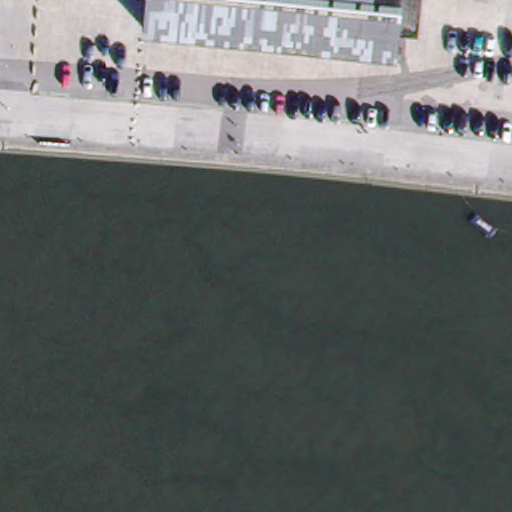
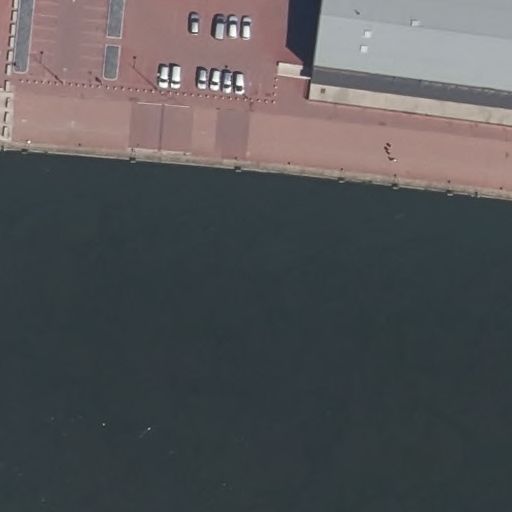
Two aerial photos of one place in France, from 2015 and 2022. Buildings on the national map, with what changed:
demolished [(394,32),(392,56),(143,31),(146,0),(418,0),(415,35),(394,32)]
new [(315,69),(324,0),(512,0),(512,111),(313,85),(315,69)]

